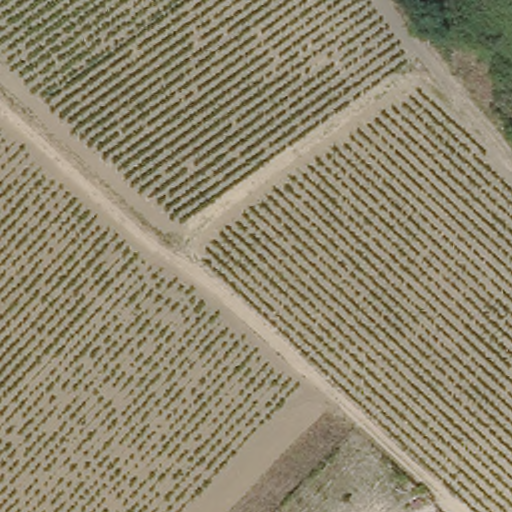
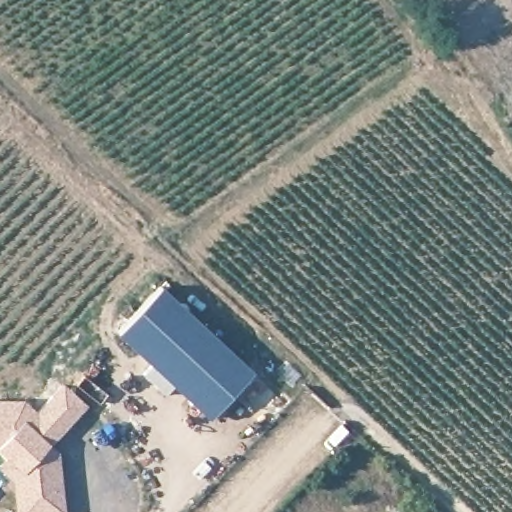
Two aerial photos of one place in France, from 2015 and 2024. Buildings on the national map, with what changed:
new [(116,333),(160,286),(252,370),(209,418),(116,333)]
new [(13,481),(0,470),(0,467),(7,457),(0,451),(0,399),(25,399),(37,410),(63,382),(88,407),(53,447),(60,453),(65,512),(16,512),(13,481)]

